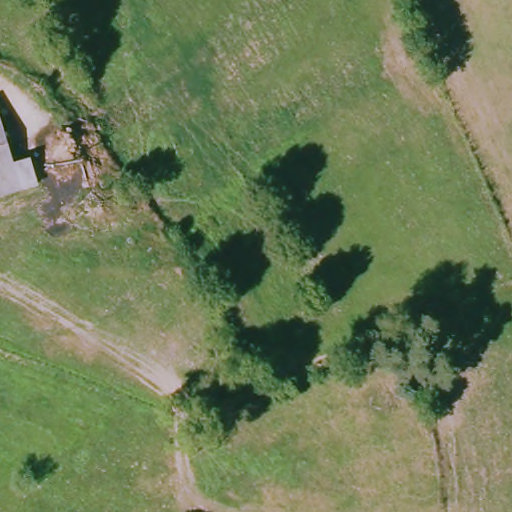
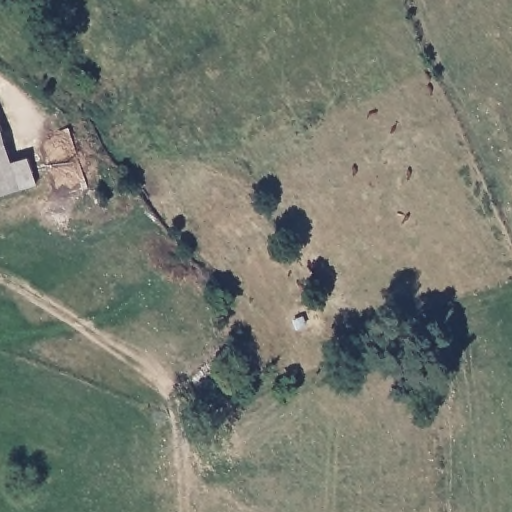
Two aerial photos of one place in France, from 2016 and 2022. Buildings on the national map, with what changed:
unchanged [(22,160),(30,187),(10,192),(0,195),(0,147),(4,164),(22,160)]

